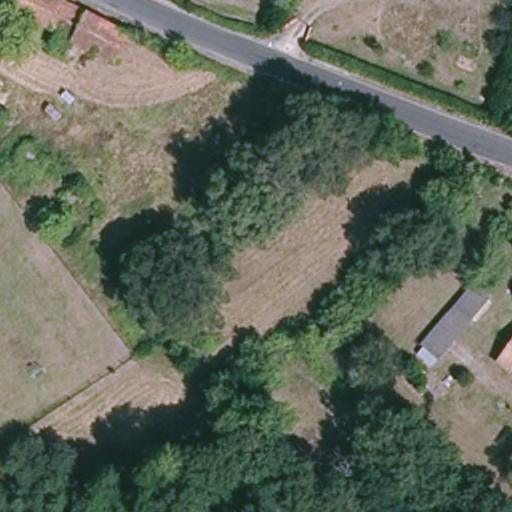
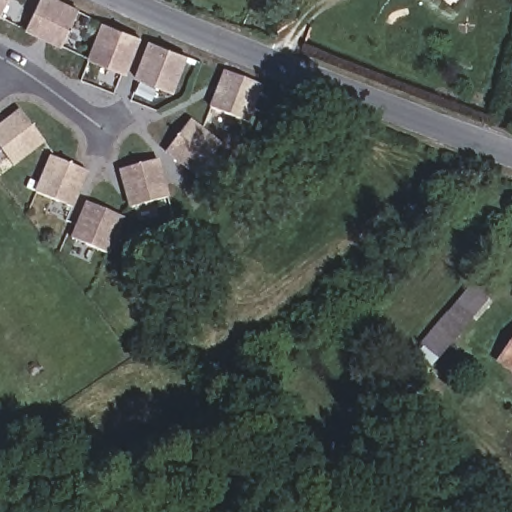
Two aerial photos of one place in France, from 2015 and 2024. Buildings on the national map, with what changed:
new [(0,0),(8,0),(0,17),(0,0)]
demolished [(7,0),(76,0),(133,25),(120,64),(4,8),(7,0)]
new [(61,0),(80,8),(62,48),(26,31),(40,0),(61,0)]
new [(104,24),(142,38),(128,76),(89,60),(104,24)]
new [(149,40),(189,58),(175,94),(135,78),(149,40)]
new [(225,71),(265,86),(249,123),(211,108),(225,71)]
demolished [(0,122),(0,102),(9,114),(0,122)]
new [(0,126),(20,110),(45,143),(15,166),(0,147),(0,126)]
new [(224,143),(197,177),(166,154),(194,119),(224,143)]
new [(36,193),(50,158),(90,174),(75,207),(36,193)]
new [(160,158),(171,198),(130,209),(120,171),(160,158)]
new [(71,240),(86,203),(125,219),(111,255),(71,240)]
unchanged [(442,359),(420,344),(472,283),(492,299),(442,359)]
unchanged [(495,361),(512,338),(512,372),(495,361)]

